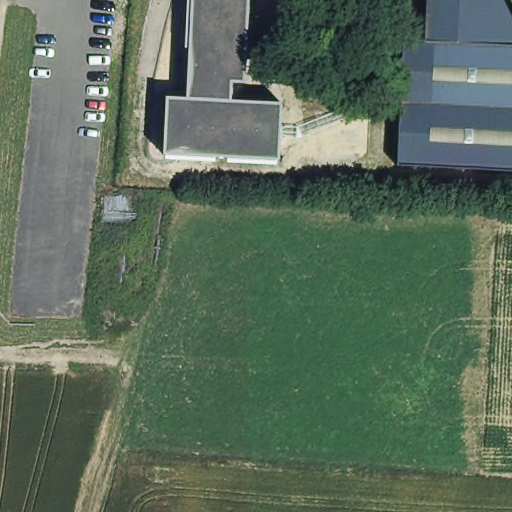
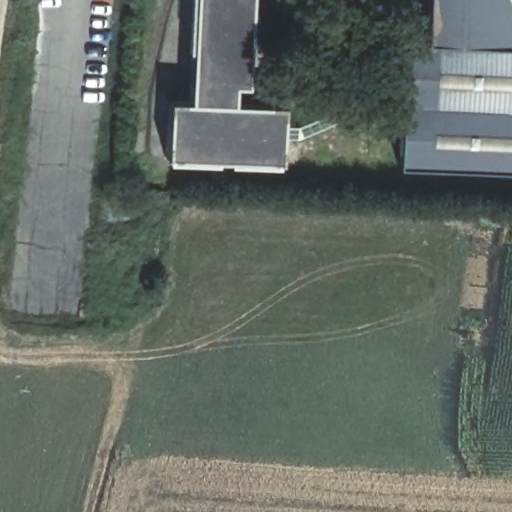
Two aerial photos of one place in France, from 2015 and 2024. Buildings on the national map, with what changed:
unchanged [(246,83),(230,81),(230,98),(283,101),(279,160),(162,154),(165,95),(185,95),(188,0),(249,0),(246,83)]
unchanged [(388,166),(395,46),(416,47),(421,0),(512,0),(512,172),(450,169),(388,166)]
unchanged [(388,166),(450,169),(512,172),(512,179),(388,172),(388,166)]

